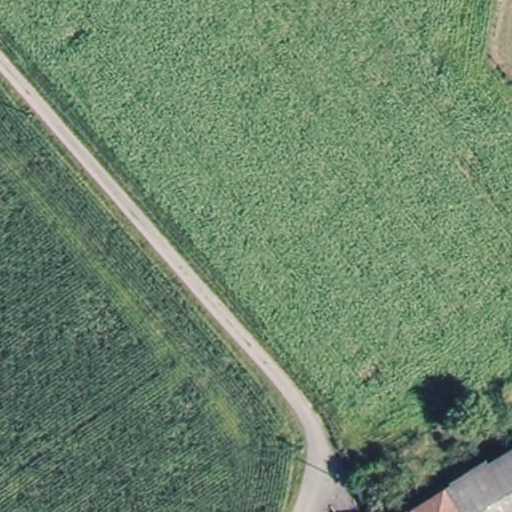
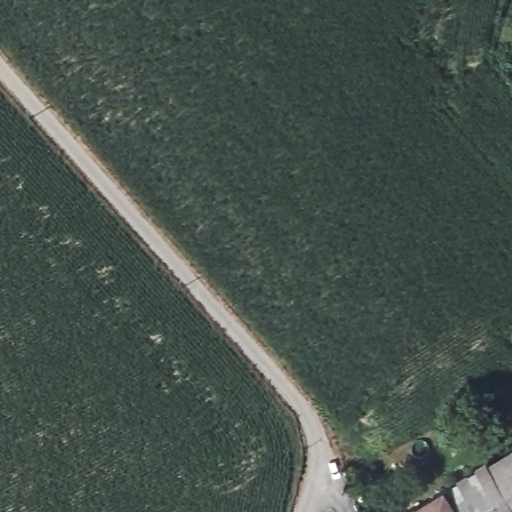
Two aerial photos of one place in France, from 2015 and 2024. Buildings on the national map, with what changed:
unchanged [(512,449),(512,512),(457,512),(445,490),(512,449)]
unchanged [(445,490),(457,512),(410,512),(445,490)]

